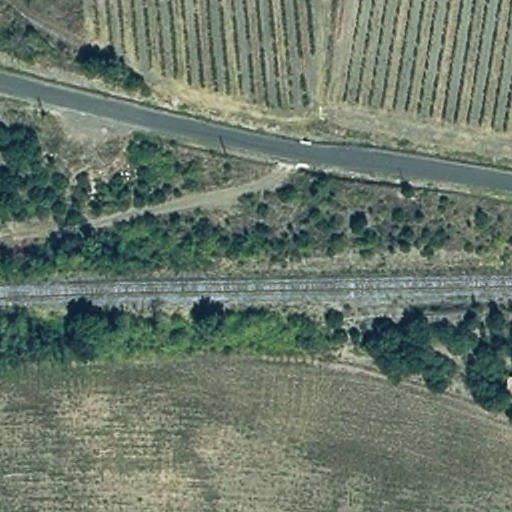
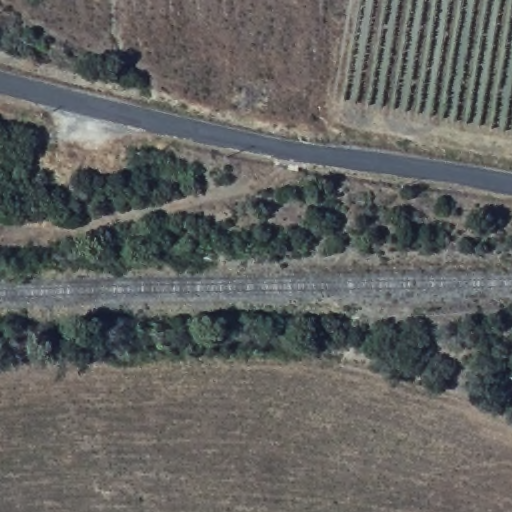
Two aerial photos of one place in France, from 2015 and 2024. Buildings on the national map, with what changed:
unchanged [(509,377),(512,378),(512,397),(502,393),(509,377)]

